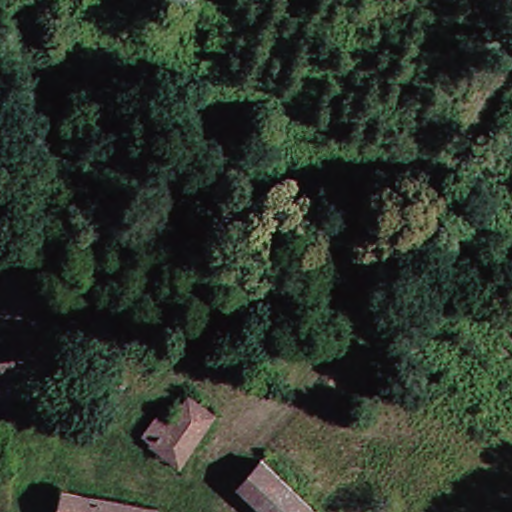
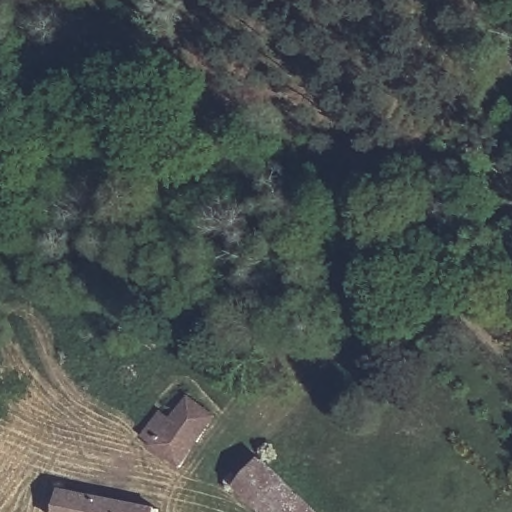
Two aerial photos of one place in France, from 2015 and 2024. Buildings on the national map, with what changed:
unchanged [(178,397),(208,422),(187,446),(158,423),(178,397)]
unchanged [(158,423),(187,446),(167,468),(133,439),(152,418),(158,423)]
unchanged [(252,457),(300,504),(307,512),(252,512),(227,488),(252,457)]
unchanged [(147,512),(47,512),(53,486),(63,488),(149,506),(147,512)]

